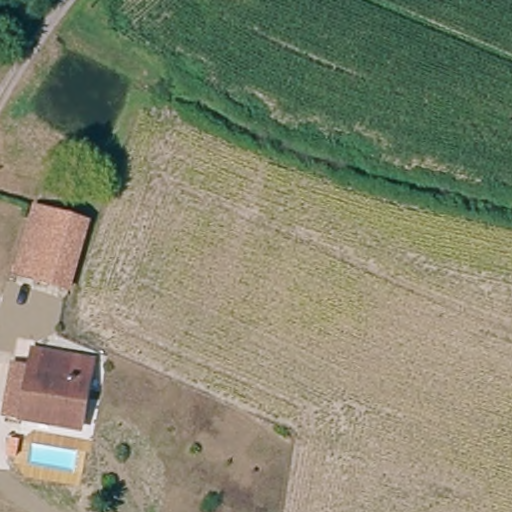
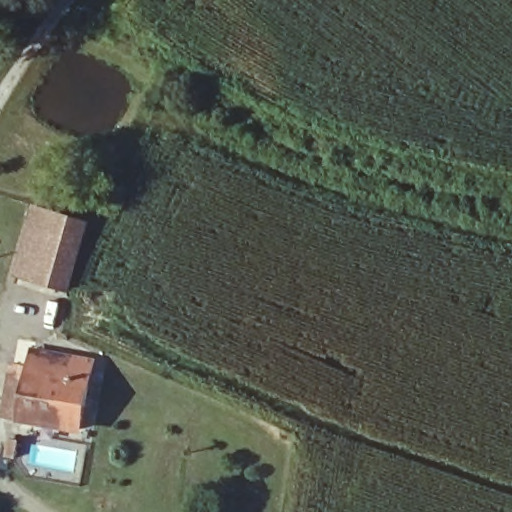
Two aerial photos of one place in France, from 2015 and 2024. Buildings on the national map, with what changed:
unchanged [(22,273),(44,212),(90,229),(66,290),(22,273)]
unchanged [(34,357),(93,367),(81,437),(22,426),(34,357)]

